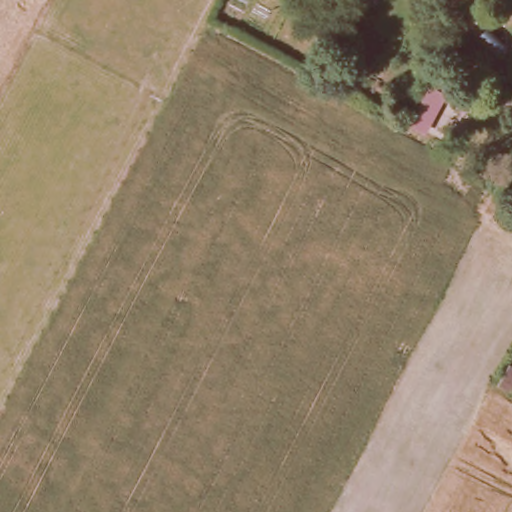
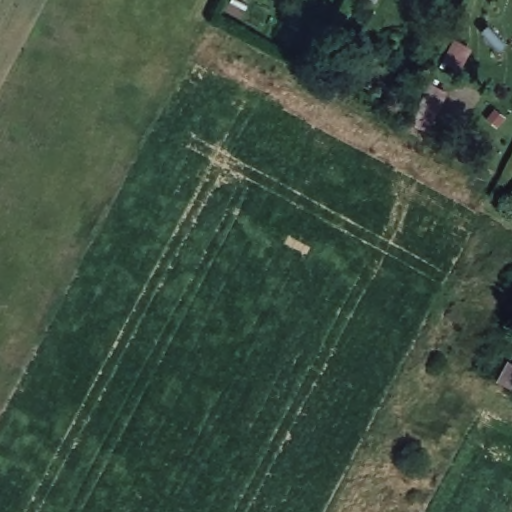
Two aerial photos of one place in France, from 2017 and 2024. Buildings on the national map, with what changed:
unchanged [(512,385),(510,390),(497,381),(508,360),(512,362),(512,385)]

